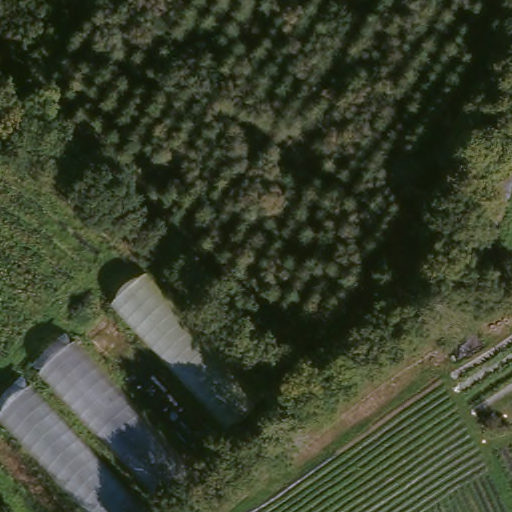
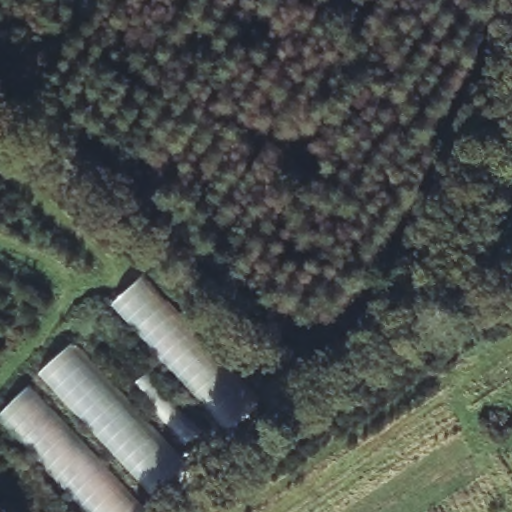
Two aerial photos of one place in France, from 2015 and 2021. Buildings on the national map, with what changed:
unchanged [(143,277),(260,401),(229,428),(112,305),(143,277)]
unchanged [(73,342),(188,468),(143,512),(89,512),(0,417),(0,415),(73,342)]

